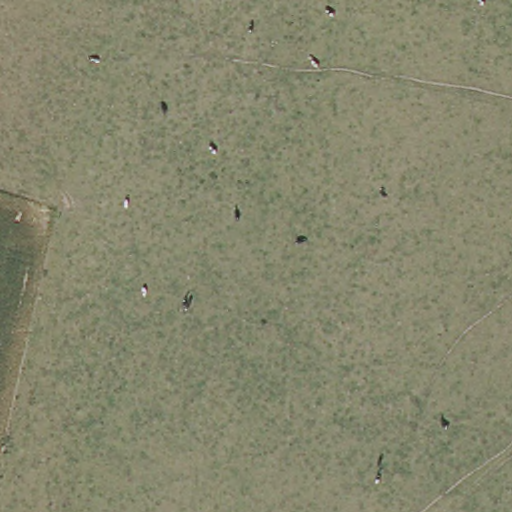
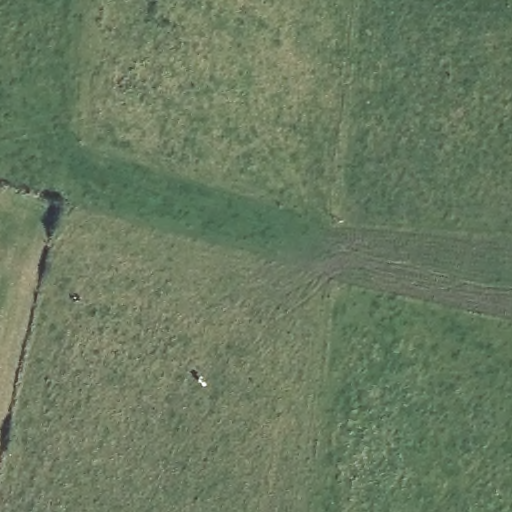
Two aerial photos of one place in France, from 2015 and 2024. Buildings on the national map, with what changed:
[]

